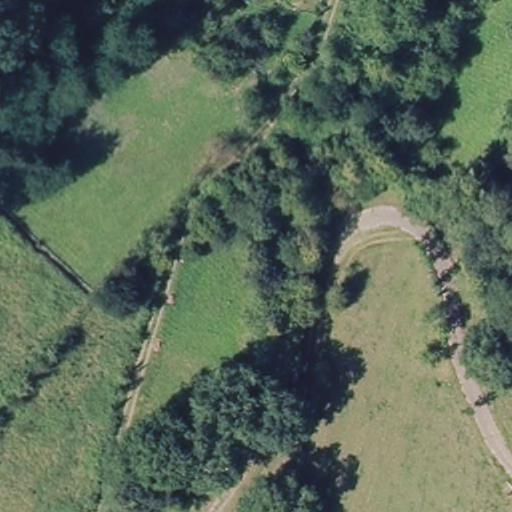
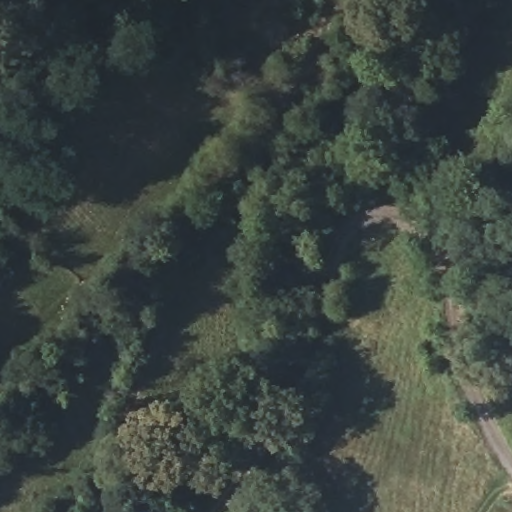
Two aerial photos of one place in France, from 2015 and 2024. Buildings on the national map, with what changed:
[]

